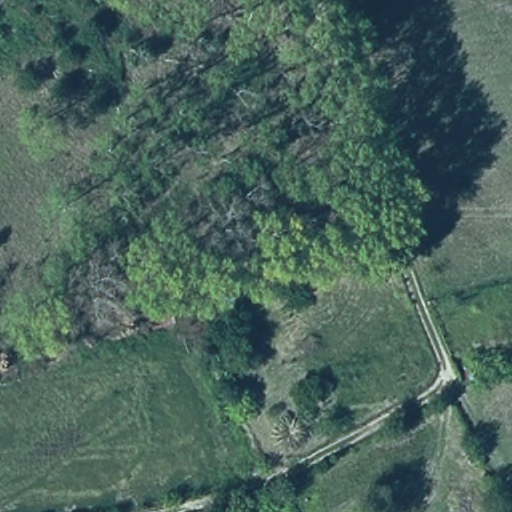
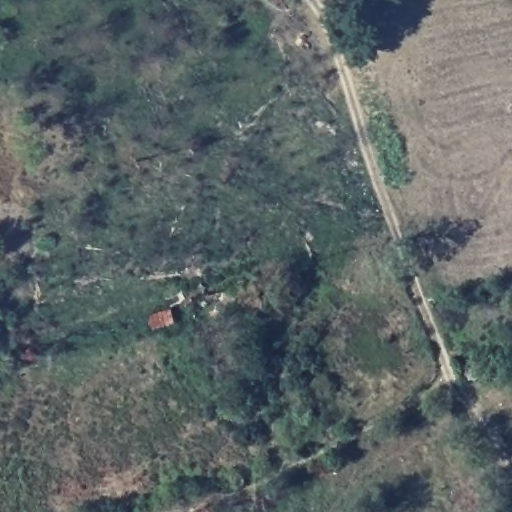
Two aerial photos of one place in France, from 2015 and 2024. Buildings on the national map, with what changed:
unchanged [(172,312),(175,325),(151,333),(147,320),(172,312)]

